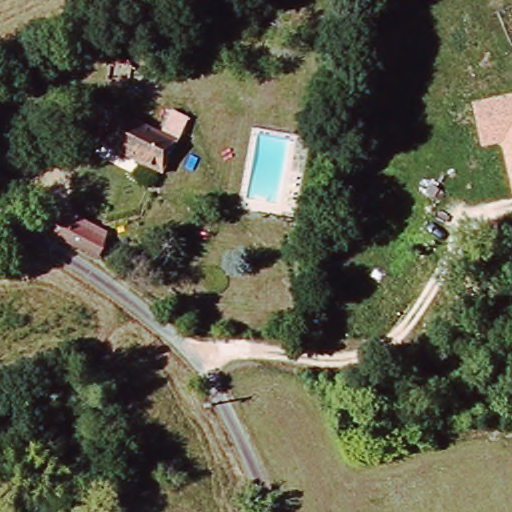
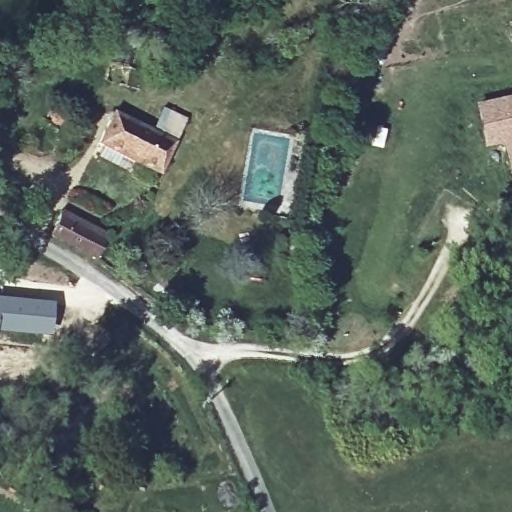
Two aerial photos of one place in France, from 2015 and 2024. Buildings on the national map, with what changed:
unchanged [(512,185),(502,143),(481,148),(473,103),(512,94),(512,185)]
unchanged [(167,106),(189,116),(176,140),(156,129),(167,106)]
unchanged [(176,140),(160,171),(98,140),(115,108),(176,140)]
unchanged [(92,226),(101,231),(86,256),(47,234),(61,209),(92,226)]
new [(54,301),(50,337),(0,333),(0,295),(54,301)]
unchanged [(344,400),(381,391),(390,428),(353,436),(344,400)]

